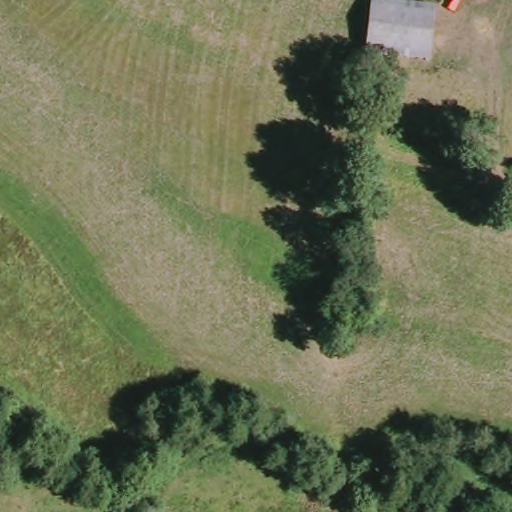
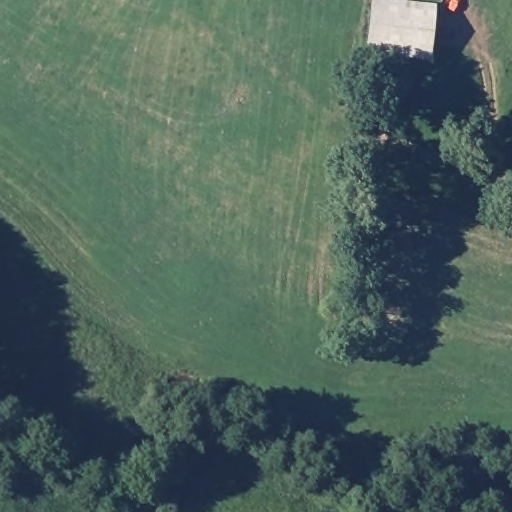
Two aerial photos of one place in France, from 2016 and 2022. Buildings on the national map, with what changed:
unchanged [(367,0),(435,11),(426,59),(363,50),(367,0)]

